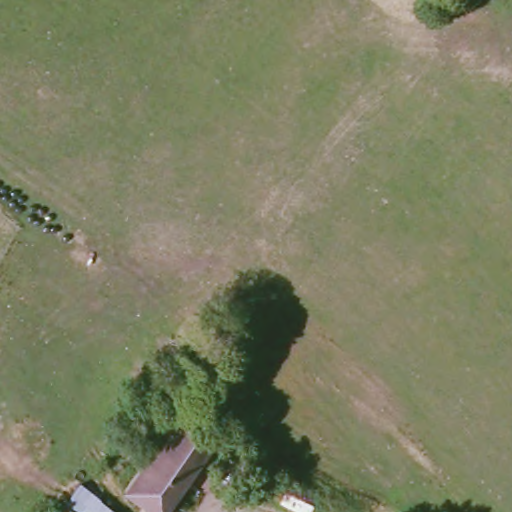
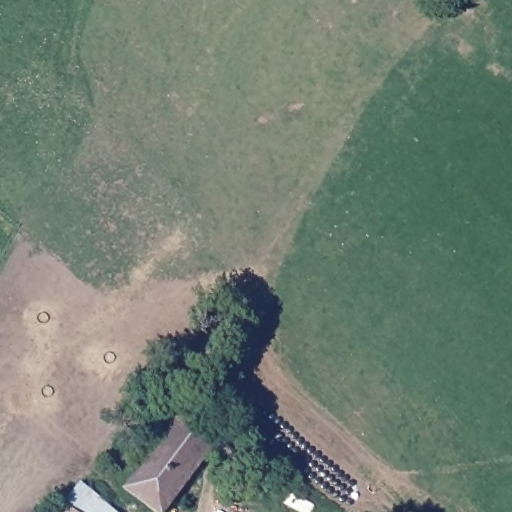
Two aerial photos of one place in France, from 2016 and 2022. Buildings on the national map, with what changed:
unchanged [(129,490),(185,413),(222,441),(169,512),(144,512),(149,505),(129,490)]
unchanged [(80,483),(113,512),(73,512),(63,504),(80,483)]
unchanged [(73,512),(57,512),(63,504),(73,512)]

